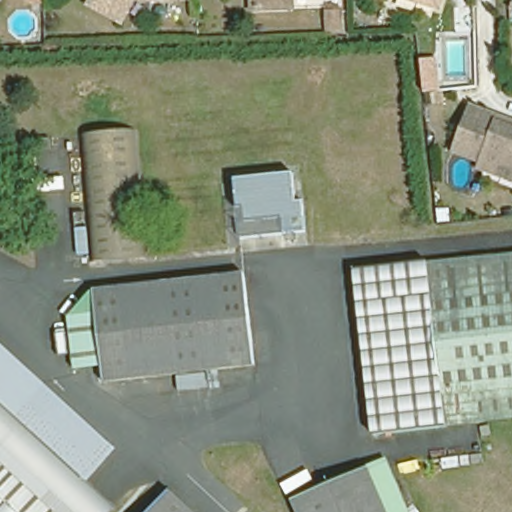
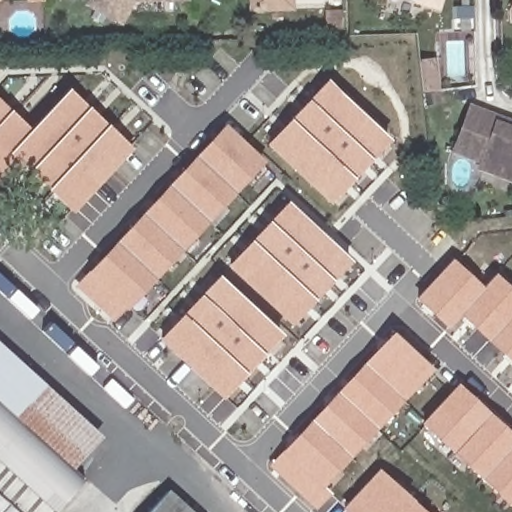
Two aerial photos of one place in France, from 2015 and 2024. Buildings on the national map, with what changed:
unchanged [(87,0),(129,0),(120,18),(87,0)]
unchanged [(255,6),(255,0),(295,0),(295,6),(255,6)]
unchanged [(417,0),(437,0),(435,6),(417,0)]
unchanged [(507,9),(511,0),(512,0),(512,10),(507,9)]
unchanged [(346,10),(346,25),(331,25),(331,10),(346,10)]
unchanged [(417,61),(431,60),(435,90),(420,91),(417,61)]
new [(323,81),(382,136),(329,196),(267,141),(323,81)]
new [(69,86),(129,148),(72,210),(8,146),(0,155),(0,102),(25,129),(69,86)]
unchanged [(496,162),(492,172),(469,163),(471,158),(447,149),(463,106),(477,112),(482,119),(492,123),(497,119),(512,125),(512,168),(496,162)]
demolished [(93,261),(80,132),(133,126),(145,257),(93,261)]
new [(258,162),(130,305),(91,269),(221,126),(258,162)]
demolished [(242,237),(241,220),(234,221),(231,179),(288,173),(292,202),(304,200),(307,232),(242,237)]
new [(283,196),(346,258),(287,319),(226,261),(283,196)]
demolished [(477,418),(443,420),(443,425),(392,430),(372,433),(368,406),(353,267),(425,259),(425,262),(512,252),(512,414),(477,418)]
new [(461,317),(449,330),(416,299),(452,259),(482,287),(495,274),(512,289),(512,365),(461,317)]
demolished [(101,382),(92,289),(231,274),(239,273),(239,282),(247,366),(101,382)]
new [(215,274),(276,330),(223,392),(160,334),(215,274)]
new [(330,495),(316,511),(268,467),(391,336),(430,372),(322,488),(330,495)]
unchanged [(72,482),(0,415),(0,353),(104,449),(72,482)]
new [(457,384),(512,435),(512,507),(511,508),(420,424),(457,384)]
unchanged [(104,512),(45,512),(0,471),(0,415),(72,482),(104,512)]
demolished [(301,494),(372,462),(394,512),(309,512),(301,494)]
new [(341,509),(377,470),(423,512),(344,512),(341,509)]
unchanged [(0,507),(0,471),(45,512),(6,512),(0,507)]
unchanged [(169,487),(197,512),(146,512),(169,487)]
unchanged [(0,507),(6,512),(0,512),(0,507)]

